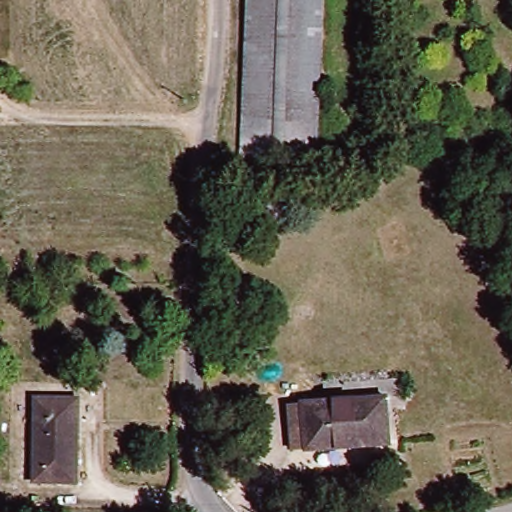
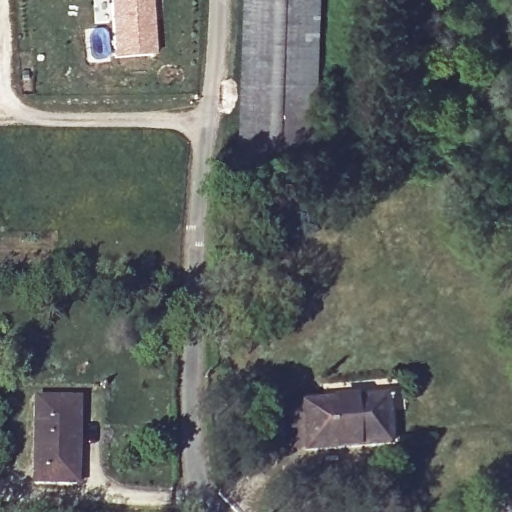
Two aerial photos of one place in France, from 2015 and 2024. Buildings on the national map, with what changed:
new [(156,55),(114,58),(110,0),(151,0),(156,55)]
unchanged [(249,0),(322,0),(316,158),(243,156),(249,0)]
unchanged [(295,409),(379,401),(383,446),(299,454),(295,409)]
unchanged [(29,484),(35,402),(81,405),(75,487),(29,484)]

